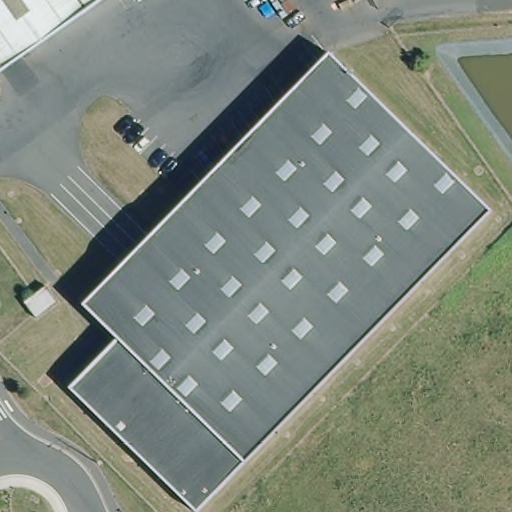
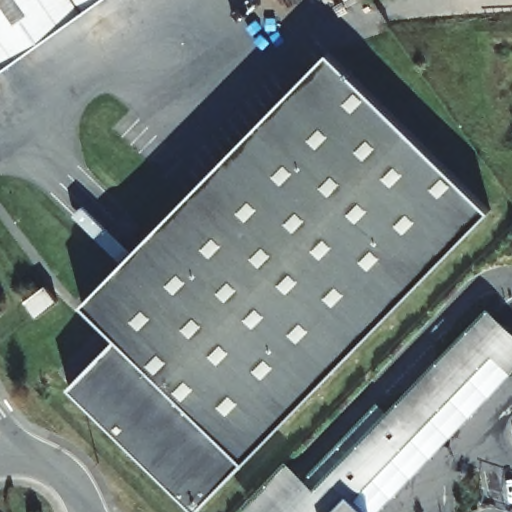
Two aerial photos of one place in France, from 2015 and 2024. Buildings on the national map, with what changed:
unchanged [(0,62),(0,0),(87,0),(0,62)]
unchanged [(359,83),(489,212),(189,511),(63,384),(112,335),(77,301),(142,237),(328,52),(359,83)]
unchanged [(41,286),(54,303),(32,320),(19,303),(41,286)]
new [(381,399),(391,410),(490,306),(512,328),(512,371),(377,512),(255,512),(246,503),(288,458),(305,476),(381,399)]

